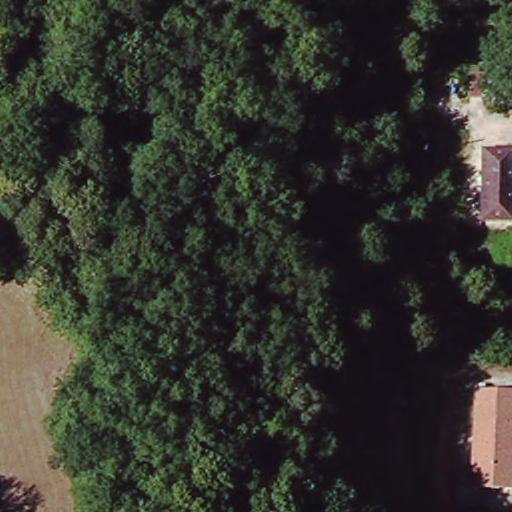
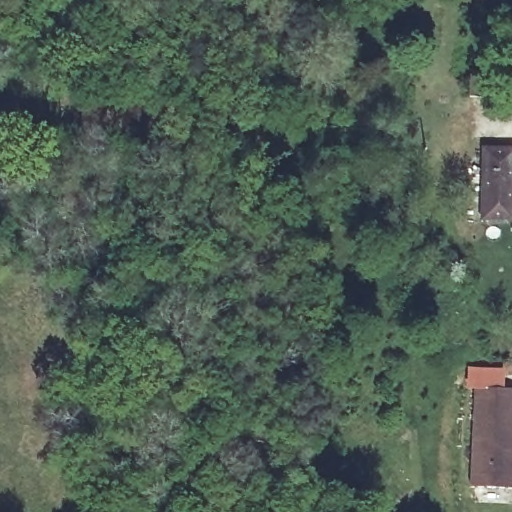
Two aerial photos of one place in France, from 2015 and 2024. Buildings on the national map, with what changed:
unchanged [(482,66),(495,67),(492,97),(479,96),(482,66)]
unchanged [(502,97),(504,67),(512,67),(512,97),(502,97)]
unchanged [(483,141),(512,143),(508,218),(477,217),(483,141)]
unchanged [(476,486),(482,388),(512,390),(512,488),(476,486)]

